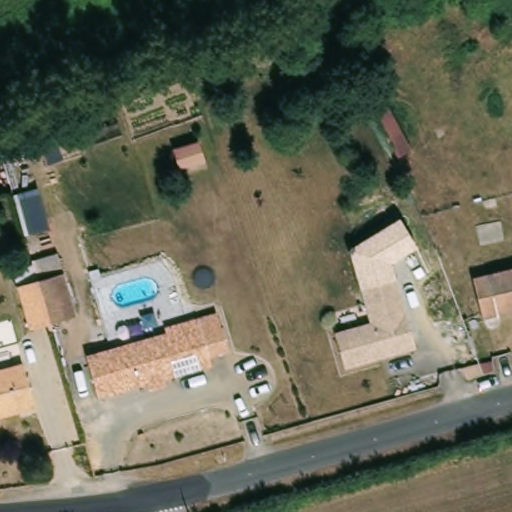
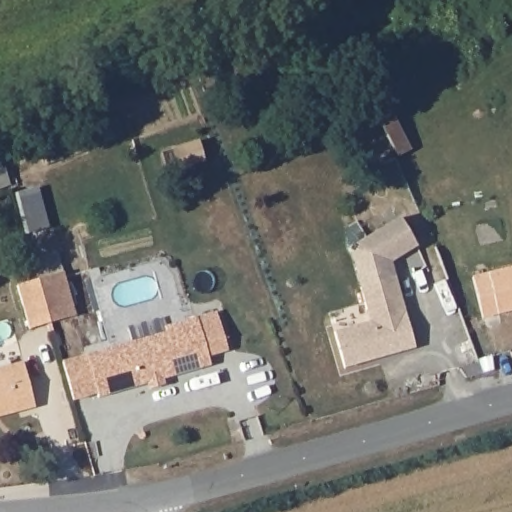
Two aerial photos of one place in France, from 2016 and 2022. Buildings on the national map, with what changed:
unchanged [(411,151),(397,157),(374,113),(388,106),(411,151)]
unchanged [(349,250),(399,217),(418,247),(390,264),(395,280),(360,290),(349,250)]
unchanged [(482,318),(472,277),(512,268),(512,311),(482,318)]
unchanged [(50,323),(29,330),(17,286),(38,280),(50,323)]
unchanged [(344,370),(334,335),(370,324),(360,290),(395,280),(415,350),(390,357),(379,360),(344,370)]
unchanged [(149,395),(148,389),(98,403),(86,361),(111,354),(166,338),(165,333),(197,324),(217,318),(227,357),(208,362),(211,372),(162,385),(164,391),(149,395)]
unchanged [(15,417),(14,414),(0,418),(0,374),(22,368),(34,412),(15,417)]

